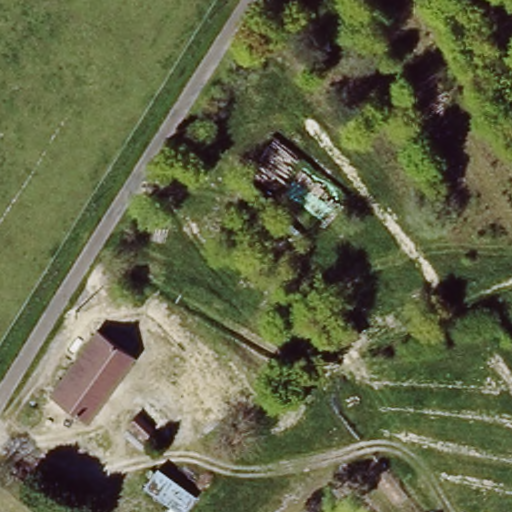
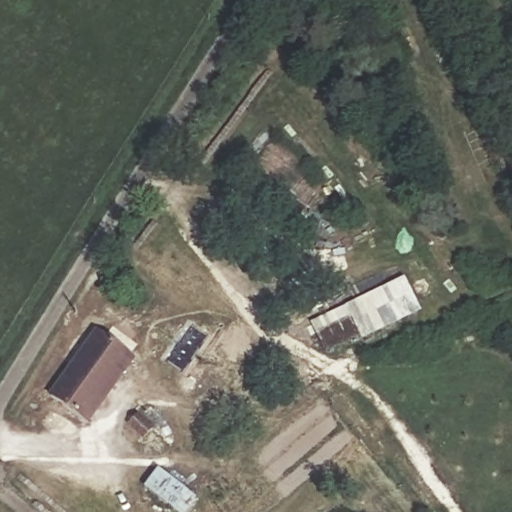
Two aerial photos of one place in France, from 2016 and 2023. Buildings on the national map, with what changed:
new [(327,355),(317,333),(352,317),(347,305),(408,275),(425,312),(327,355)]
unchanged [(73,362),(84,345),(110,362),(73,420),(37,396),(62,355),(73,362)]
unchanged [(150,435),(155,436),(157,442),(157,447),(165,457),(155,465),(133,437),(142,428),(150,435)]
unchanged [(195,512),(174,512),(145,491),(165,468),(207,495),(195,512)]

